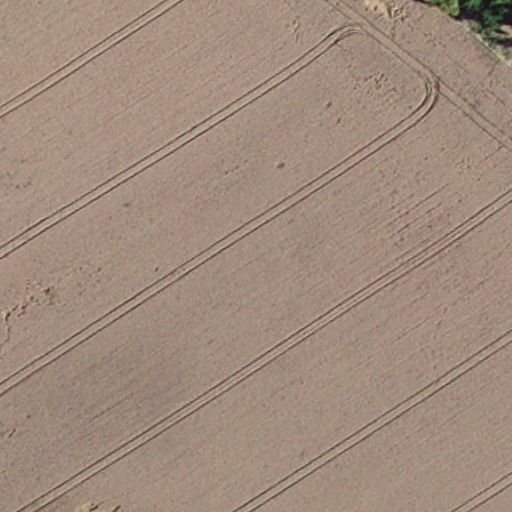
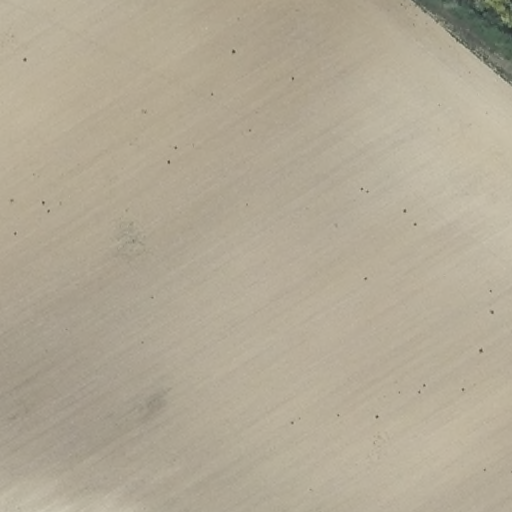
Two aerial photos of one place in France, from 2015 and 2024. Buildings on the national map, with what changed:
[]

